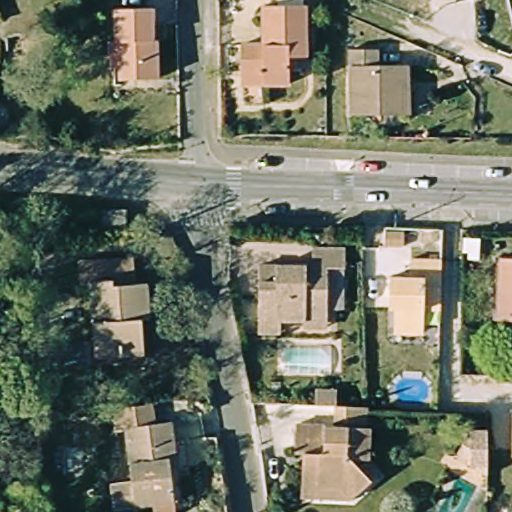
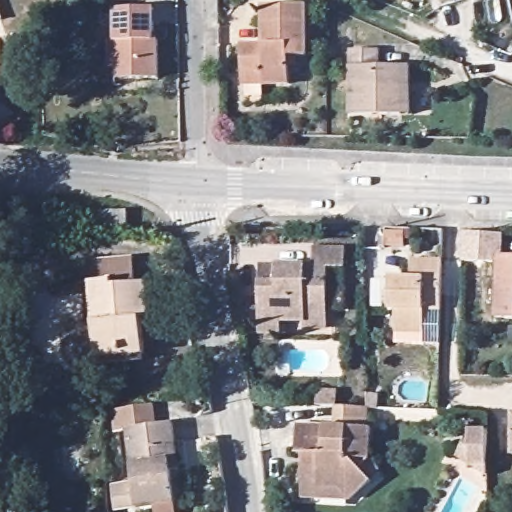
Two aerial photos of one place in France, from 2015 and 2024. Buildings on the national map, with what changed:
unchanged [(243,73),(242,46),(266,45),(265,8),(306,7),(307,57),(298,57),(298,67),(290,68),(290,84),(266,85),(243,86),(243,73)]
unchanged [(113,46),(119,46),(118,13),(155,13),(156,45),(160,45),(161,83),(124,84),(124,72),(113,72),(113,46)]
unchanged [(352,52),(379,51),(379,66),(410,67),(410,85),(402,85),(402,116),(353,116),(352,52)]
unchanged [(128,214),(127,230),(102,230),(102,212),(128,214)]
unchanged [(306,328),(307,323),(282,322),(281,334),(261,333),(265,266),(316,267),(317,249),(347,250),(347,272),(330,272),(329,313),(328,330),(306,328)]
unchanged [(389,330),(389,326),(393,277),(413,278),(414,259),(447,261),(446,280),(444,306),(444,311),(427,310),(426,328),(425,333),(389,330)]
unchanged [(499,320),(504,260),(512,260),(512,321),(499,320)]
unchanged [(108,355),(105,282),(96,282),(95,262),(138,261),(140,285),(152,285),(153,306),(154,323),(145,323),(146,346),(147,353),(124,354),(108,355)]
unchanged [(159,402),(161,423),(176,422),(178,440),(131,442),(130,433),(119,433),(119,402),(159,402)]
unchanged [(305,501),(306,467),(314,467),(314,457),(297,455),(299,427),(336,429),(337,408),(369,410),(367,430),(373,431),(371,461),(362,470),(374,484),(354,502),(326,502),(305,501)]
unchanged [(174,512),(134,512),(131,442),(178,440),(179,462),(173,462),(174,512)]
unchanged [(485,454),(487,487),(452,474),(467,443),(485,442),(485,454)]

